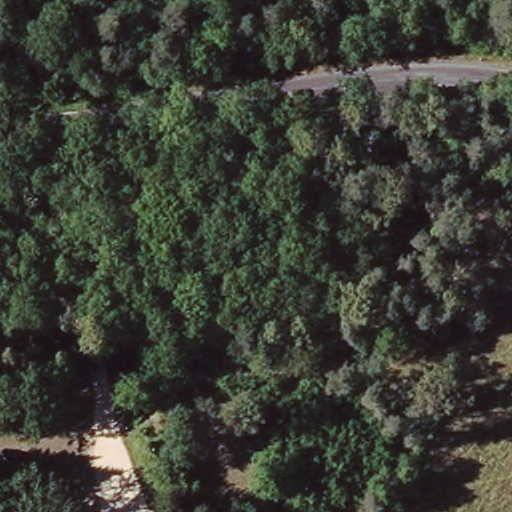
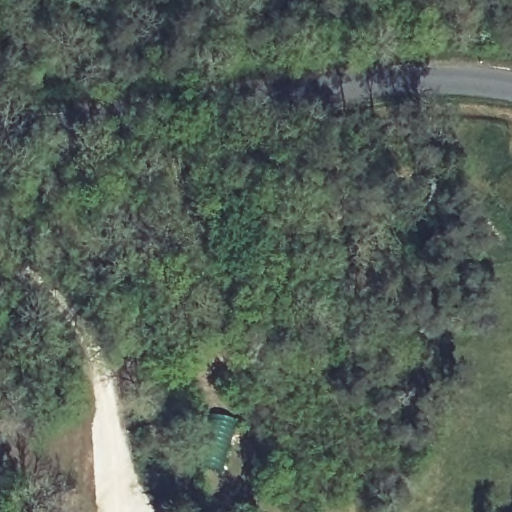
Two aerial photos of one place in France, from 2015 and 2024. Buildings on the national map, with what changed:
unchanged [(504,208),(495,194),(496,179),(504,169),(512,166),(512,210),(504,208)]

